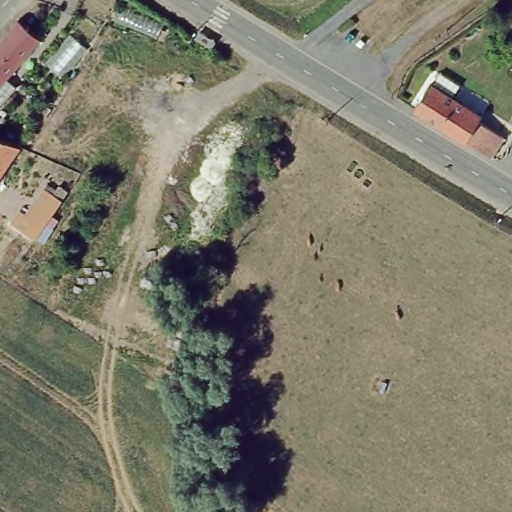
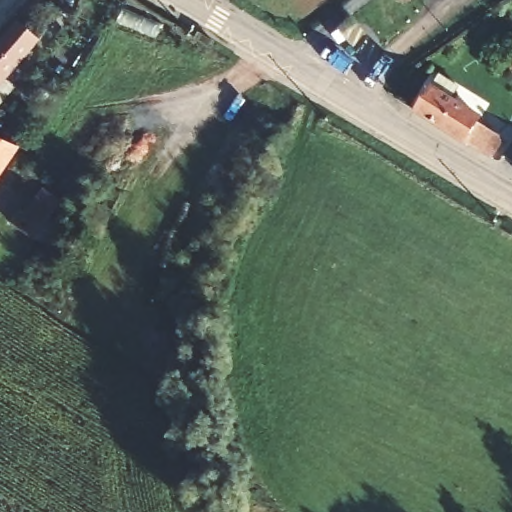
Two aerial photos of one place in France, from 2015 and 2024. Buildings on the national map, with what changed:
unchanged [(2,93),(0,113),(0,114),(0,39),(20,17),(45,41),(2,93)]
unchanged [(497,67),(512,54),(512,82),(497,67)]
unchanged [(439,80),(459,91),(454,101),(490,118),(487,123),(505,132),(507,143),(499,156),(419,114),(439,80)]
unchanged [(0,173),(0,140),(15,147),(0,173)]
unchanged [(25,206),(34,190),(59,204),(39,232),(14,214),(19,202),(25,206)]

